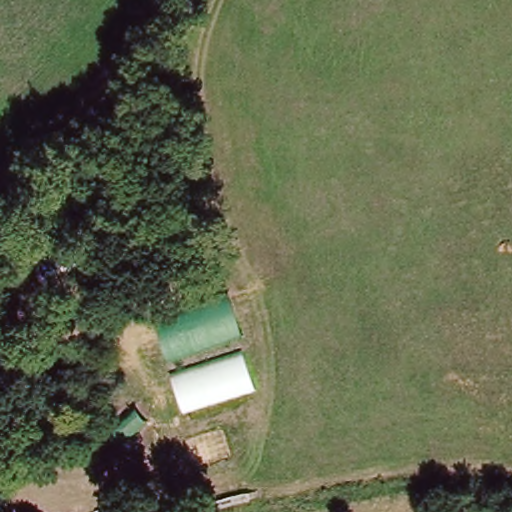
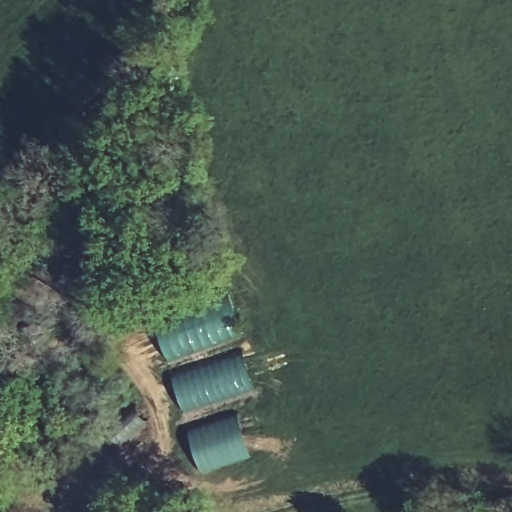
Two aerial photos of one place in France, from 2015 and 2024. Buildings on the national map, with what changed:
unchanged [(167,360),(154,318),(226,290),(243,334),(167,360)]
unchanged [(257,390),(183,412),(172,370),(243,348),(257,390)]
new [(253,455),(202,474),(188,432),(238,413),(253,455)]

